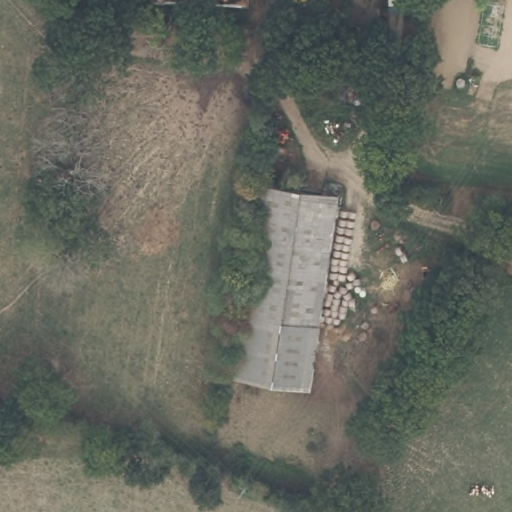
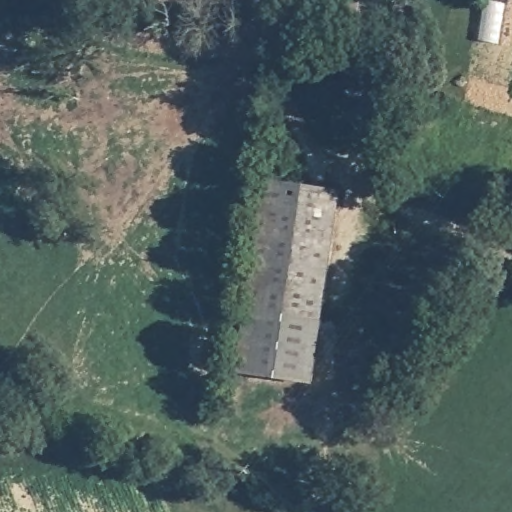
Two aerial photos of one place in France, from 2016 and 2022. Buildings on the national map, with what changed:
unchanged [(338,194),(311,385),(234,375),(261,185),(338,194)]

